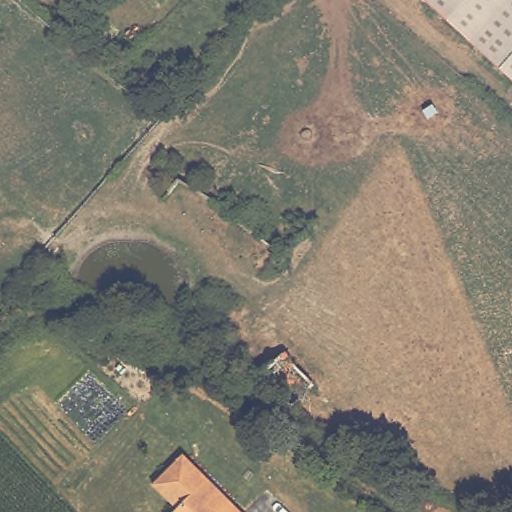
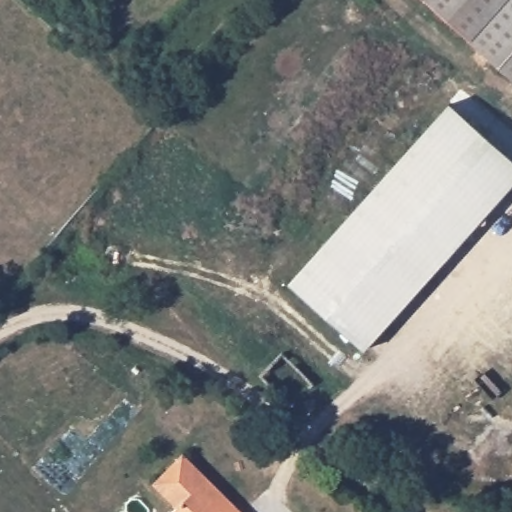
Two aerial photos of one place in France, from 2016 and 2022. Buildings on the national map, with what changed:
unchanged [(512,0),(512,80),(422,0),(512,0)]
new [(512,187),(365,352),(287,282),(447,102),(512,159),(512,187)]
demolished [(286,349),(319,380),(296,403),(264,372),(286,349)]
unchanged [(176,509),(152,485),(182,454),(240,512),(173,512),(176,509)]

